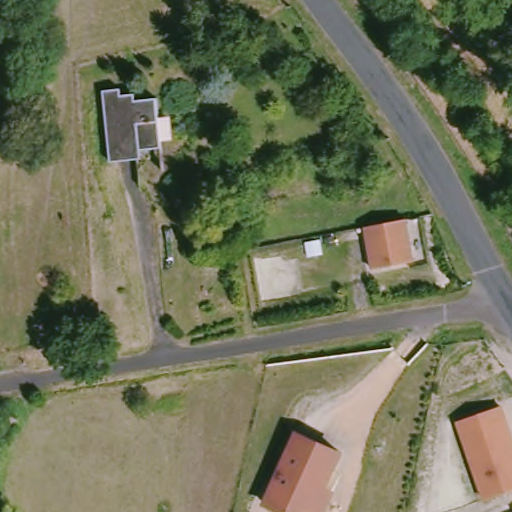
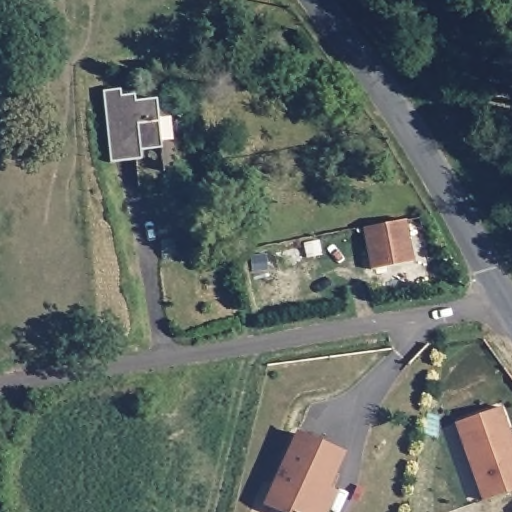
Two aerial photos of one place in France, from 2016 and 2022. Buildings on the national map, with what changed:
unchanged [(124,86),(125,92),(140,90),(140,97),(160,95),(169,148),(144,151),(145,159),(115,163),(105,89),(124,86)]
unchanged [(388,264),(372,266),(365,224),(405,217),(413,259),(388,264)]
unchanged [(460,420),(503,405),(512,431),(512,491),(487,499),(460,420)]
unchanged [(335,493),(325,512),(286,512),(268,503),(301,433),(344,453),(327,489),(335,493)]

